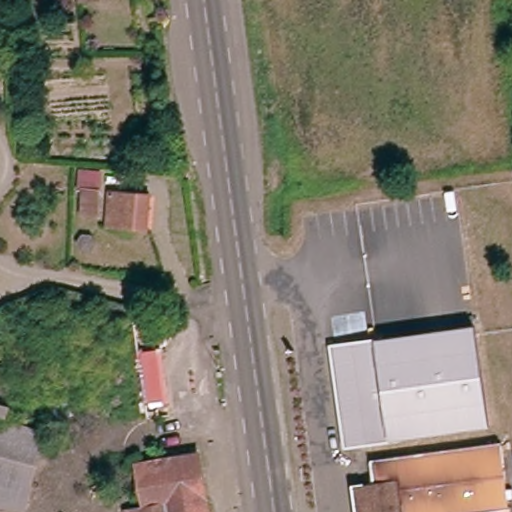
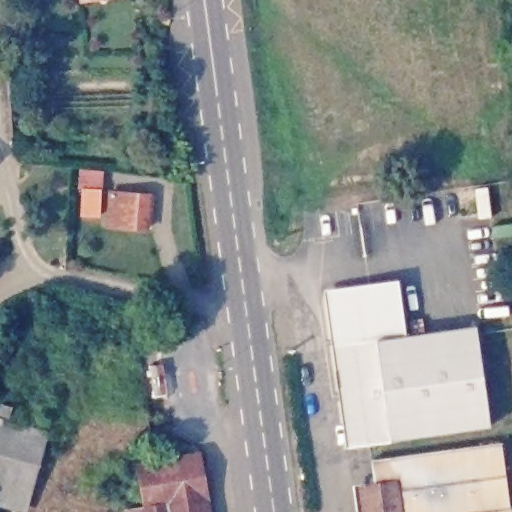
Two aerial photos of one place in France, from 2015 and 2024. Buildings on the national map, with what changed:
unchanged [(0,164),(0,157),(4,159),(0,164)]
unchanged [(107,191),(106,214),(91,214),(92,190),(107,191)]
unchanged [(157,196),(156,227),(117,224),(117,193),(157,196)]
new [(377,339),(330,346),(323,292),(398,281),(406,335),(377,339)]
unchanged [(484,427),(345,447),(330,346),(470,326),(484,427)]
unchanged [(35,372),(30,390),(21,387),(25,371),(27,372),(28,370),(35,372)]
unchanged [(0,415),(0,402),(10,405),(6,417),(0,415)]
unchanged [(0,473),(0,431),(45,444),(35,482),(0,473)]
unchanged [(364,489),(375,488),(371,463),(500,445),(503,469),(473,473),(479,512),(359,512),(356,490),(364,489)]
unchanged [(149,503),(143,460),(200,450),(212,512),(132,512),(131,507),(149,503)]
new [(486,512),(479,512),(473,473),(503,469),(508,509),(486,512)]
unchanged [(509,512),(486,512),(508,509),(509,512)]

